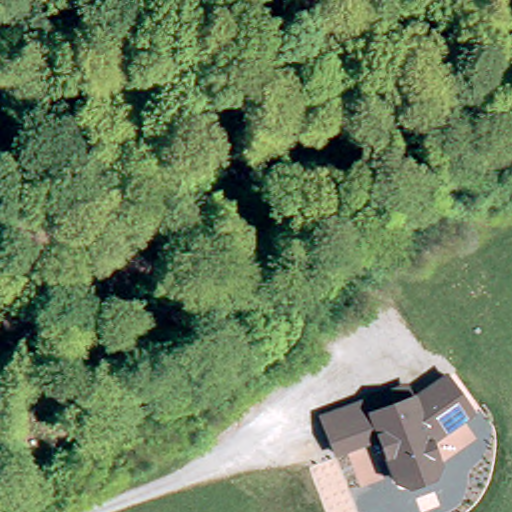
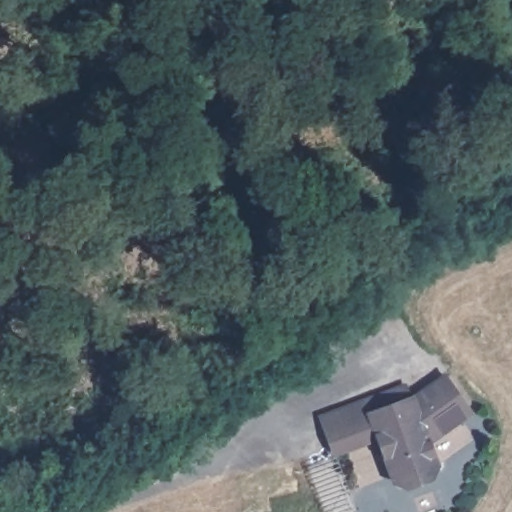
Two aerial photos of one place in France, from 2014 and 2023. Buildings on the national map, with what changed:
unchanged [(372,416),(412,401),(414,400),(447,376),(472,412),(430,443),(438,466),(432,480),(410,489),(397,482),(380,439),(337,454),(328,432),(372,416)]
unchanged [(323,417),(407,386),(412,401),(372,416),(328,432),(323,417)]

